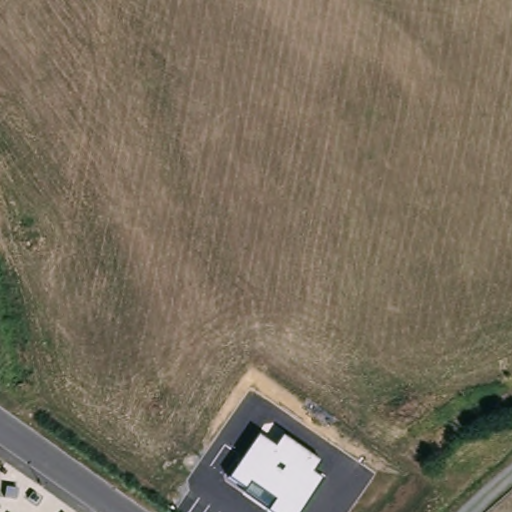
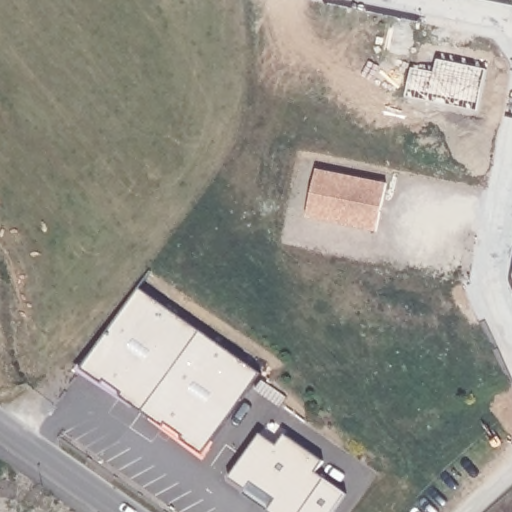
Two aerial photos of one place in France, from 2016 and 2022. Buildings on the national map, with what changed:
new [(387,182),(377,230),(306,217),(316,170),(387,182)]
new [(196,329),(256,372),(200,452),(83,368),(139,289),(196,329)]
unchanged [(276,499),(250,482),(246,489),(230,477),(260,436),(276,446),(284,435),(322,461),(314,472),(323,479),(299,512),(271,512),(268,509),(276,499)]
new [(333,512),(299,512),(323,479),(346,494),(333,512)]

